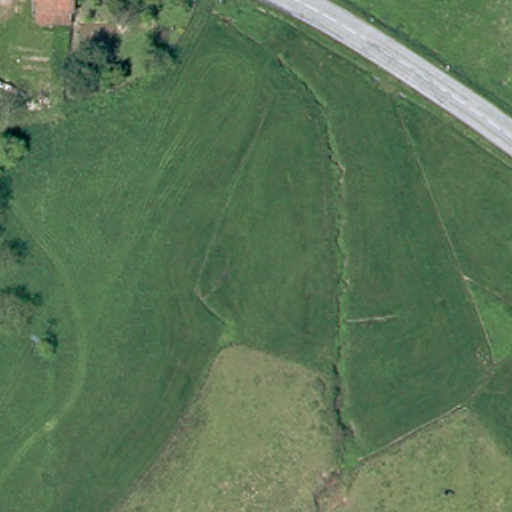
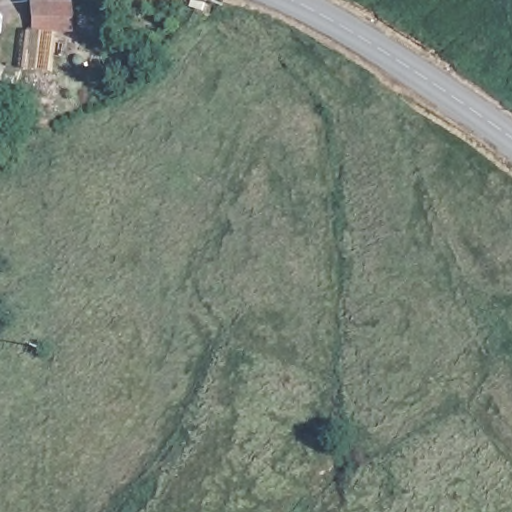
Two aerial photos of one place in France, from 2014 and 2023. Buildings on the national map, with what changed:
unchanged [(69,35),(39,32),(42,0),(72,0),(69,35)]

